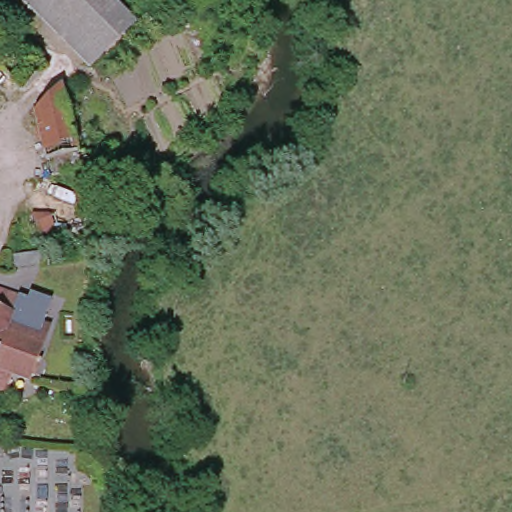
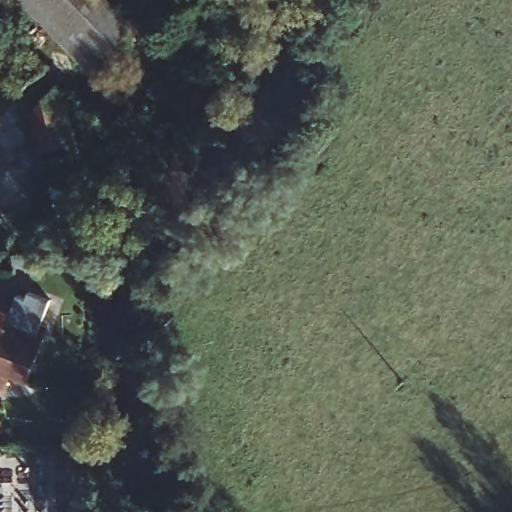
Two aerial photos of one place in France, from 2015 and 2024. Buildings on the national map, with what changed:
unchanged [(98,59),(40,0),(113,0),(135,22),(98,59)]
unchanged [(60,74),(77,142),(78,142),(115,133),(125,192),(55,206),(45,167),(47,165),(33,102),(60,74)]
unchanged [(37,262),(11,267),(9,257),(35,251),(36,256),(37,262)]
unchanged [(10,367),(3,386),(0,384),(0,283),(17,289),(10,307),(48,322),(27,374),(10,367)]

